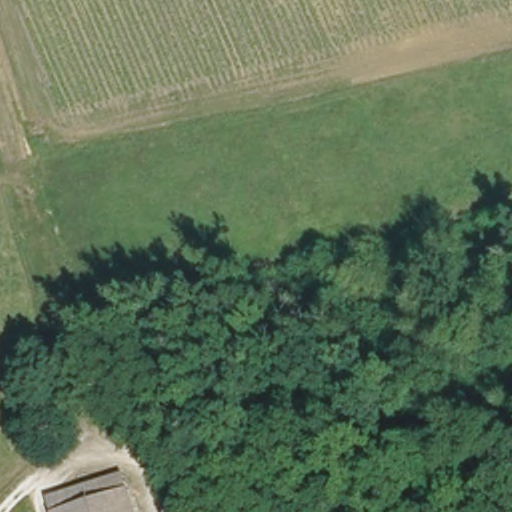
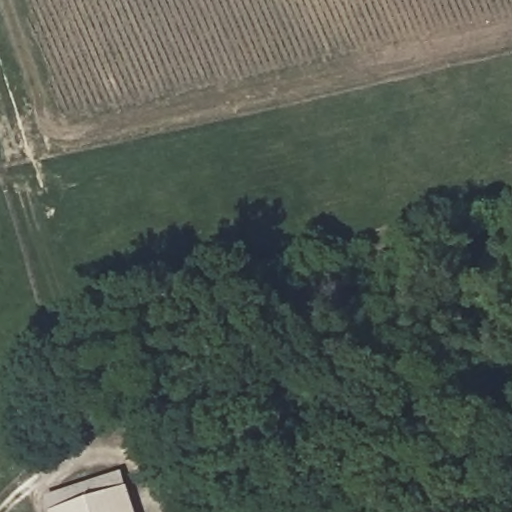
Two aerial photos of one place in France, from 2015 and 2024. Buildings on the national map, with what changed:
unchanged [(119,477),(134,511),(131,512),(51,512),(50,510),(119,477)]
unchanged [(135,512),(131,512),(134,511),(135,512)]

